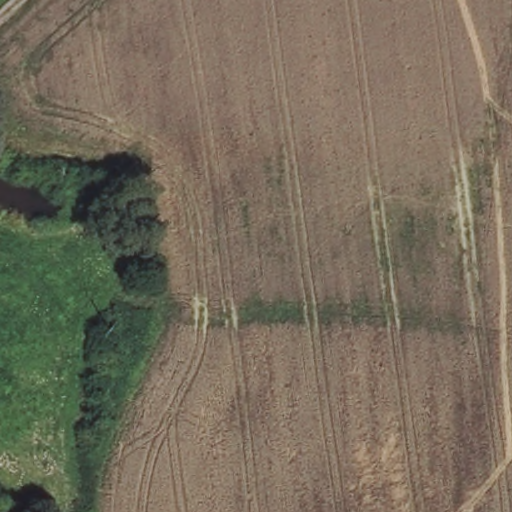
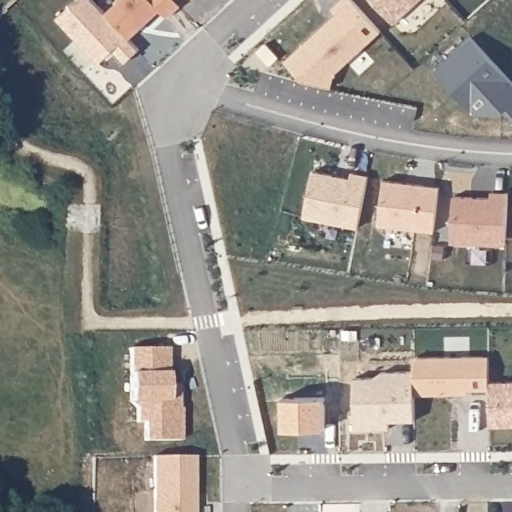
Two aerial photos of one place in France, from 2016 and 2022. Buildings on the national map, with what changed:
new [(76,0),(94,0),(105,12),(129,37),(140,50),(125,62),(114,49),(99,61),(57,16),(76,0)]
new [(176,0),(183,6),(168,20),(159,10),(129,37),(105,12),(119,0),(176,0)]
new [(301,46),(339,14),(334,8),(343,0),(351,0),(382,33),(330,78),(301,46)]
new [(418,0),(394,22),(373,0),(418,0)]
new [(304,217),(313,170),(351,177),(352,172),(369,175),(357,227),(304,217)]
new [(378,224),(384,180),(439,186),(434,231),(378,224)]
new [(451,242),(454,195),(490,196),(491,191),(508,191),(505,245),(451,242)]
new [(170,347),(171,384),(181,383),(182,408),(179,408),(179,418),(184,417),(184,440),(147,440),(147,421),(139,421),(139,407),(133,401),(133,347),(170,347)]
new [(414,370),(414,356),(489,355),(489,390),(468,390),(468,394),(414,395),(414,370)]
new [(354,427),(354,376),(374,376),(382,370),(414,370),(414,395),(414,420),(388,420),(388,427),(354,427)]
new [(512,388),(512,429),(497,430),(496,389),(512,388)]
new [(319,434),(277,435),(277,402),(319,402),(319,434)]
new [(197,455),(198,512),(156,512),(155,456),(197,455)]

